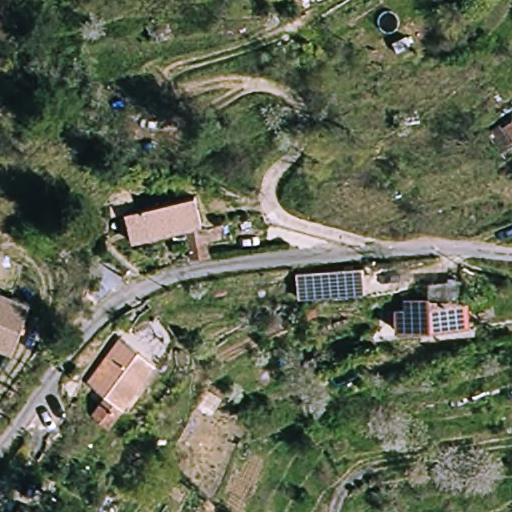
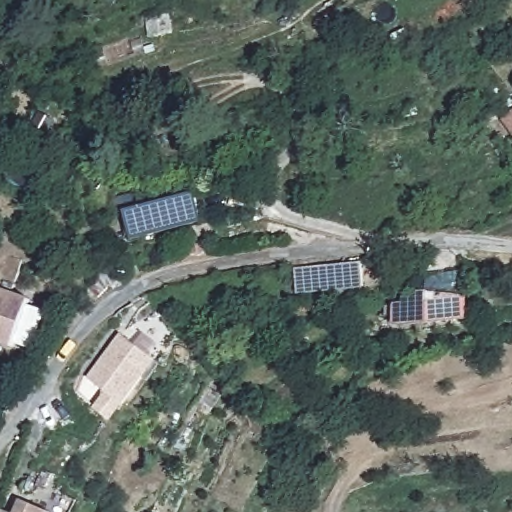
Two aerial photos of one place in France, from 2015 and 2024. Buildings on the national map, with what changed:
unchanged [(512,143),(503,149),(491,127),(512,113),(512,143)]
unchanged [(201,223),(133,240),(124,211),(194,194),(201,223)]
unchanged [(300,293),(297,270),(363,265),(364,288),(300,293)]
unchanged [(15,343),(0,338),(0,285),(12,289),(32,296),(15,343)]
unchanged [(402,294),(467,295),(465,322),(403,327),(402,294)]
unchanged [(87,379),(120,337),(154,366),(122,407),(87,379)]
unchanged [(30,500),(54,512),(23,512),(30,500)]

